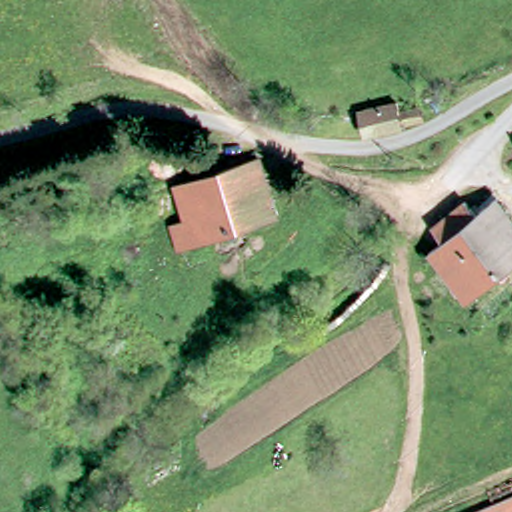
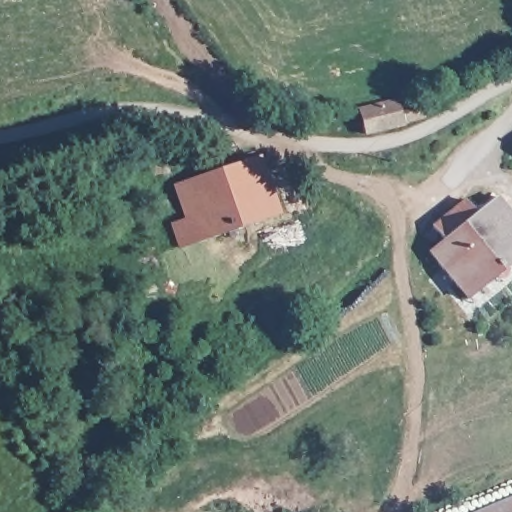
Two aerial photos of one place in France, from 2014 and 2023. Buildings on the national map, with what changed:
unchanged [(393,123),(360,132),(353,111),(387,101),(393,123)]
unchanged [(178,211),(166,176),(216,159),(213,150),(212,149),(247,137),(270,220),(228,232),(230,240),(220,243),(217,234),(176,249),(164,219),(178,211)]
unchanged [(490,193),(512,221),(512,253),(507,257),(505,272),(489,270),(455,296),(416,250),(429,239),(420,228),(458,193),(468,208),(490,193)]
unchanged [(512,512),(477,512),(512,498),(512,512)]

